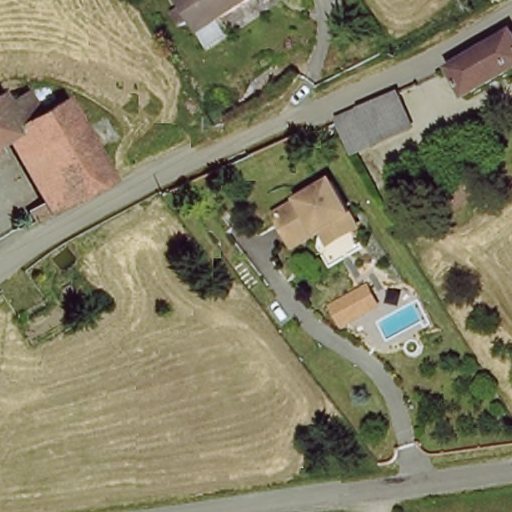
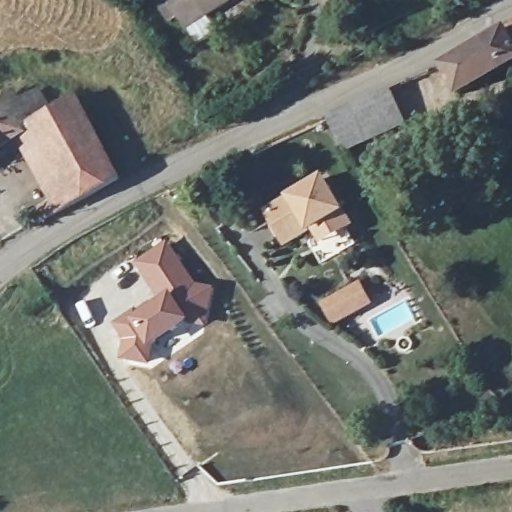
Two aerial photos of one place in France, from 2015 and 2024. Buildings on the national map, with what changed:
unchanged [(512,17),(512,34),(506,38),(512,48),(512,60),(455,96),(438,68),(500,30),(499,27),(512,17)]
unchanged [(45,219),(38,207),(55,197),(18,132),(0,143),(0,96),(16,87),(23,97),(41,87),(55,108),(77,96),(122,175),(45,219)]
unchanged [(392,89),(407,124),(363,143),(344,152),(329,116),(392,89)]
unchanged [(318,239),(310,225),(282,242),(263,209),(319,176),(338,207),(347,222),(318,239)]
new [(155,296),(133,263),(167,240),(197,282),(216,286),(211,311),(208,323),(205,322),(198,327),(193,322),(175,330),(156,346),(148,366),(119,361),(122,349),(121,341),(111,324),(155,296)]
new [(360,286),(370,303),(334,322),(325,305),(360,286)]

